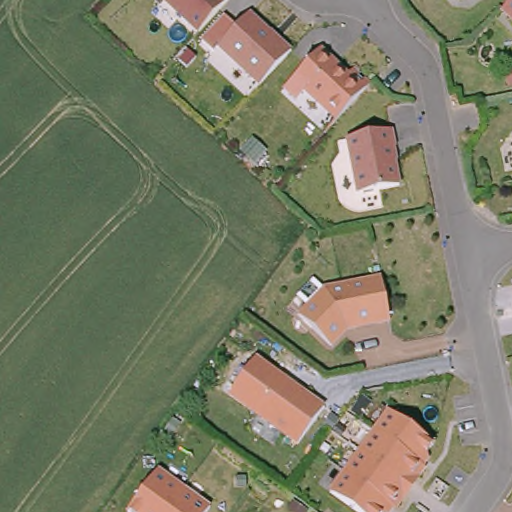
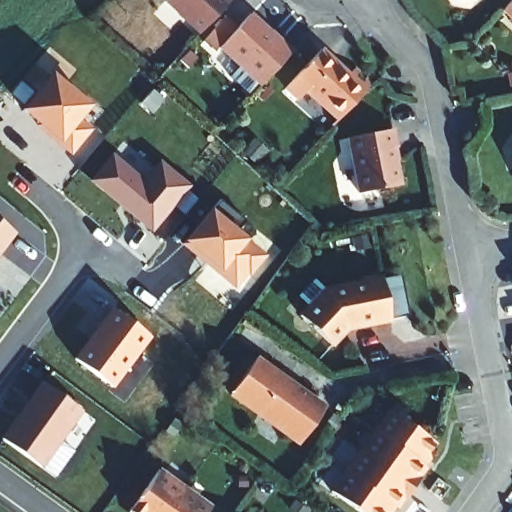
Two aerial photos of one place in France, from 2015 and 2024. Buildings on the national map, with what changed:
unchanged [(150,0),(213,0),(185,32),(150,0)]
unchanged [(497,0),(512,0),(512,25),(491,7),(497,0)]
unchanged [(259,72),(248,84),(206,46),(235,13),(263,38),(264,37),(278,50),(259,72)]
new [(148,32),(157,39),(146,51),(138,43),(148,32)]
new [(223,64),(212,76),(194,59),(204,47),(223,64)]
unchanged [(345,99),(318,128),(287,101),(280,110),(266,99),(301,60),(330,85),(345,67),(360,81),(345,99)]
new [(91,106),(79,121),(91,131),(70,157),(35,129),(38,125),(20,110),(51,74),(91,106)]
unchanged [(350,195),(337,139),(381,130),(385,147),(382,148),(390,186),(350,195)]
unchanged [(512,147),(512,171),(507,148),(512,147)]
new [(142,180),(158,160),(190,187),(151,233),(88,182),(112,152),(142,180)]
new [(247,240),(266,257),(248,277),(245,274),(233,289),(180,245),(182,242),(210,209),(247,240)]
new [(15,234),(0,254),(0,223),(15,234)]
unchanged [(290,317),(317,290),(368,280),(372,279),(373,282),(373,283),(375,295),(381,322),(347,328),(346,320),(341,320),(335,327),(338,330),(322,347),(290,317)]
new [(151,338),(113,388),(73,359),(111,307),(151,338)]
unchanged [(292,446),(222,396),(248,360),(317,410),(292,446)]
new [(83,414),(43,471),(0,438),(41,382),(83,414)]
unchanged [(427,446),(413,466),(415,467),(387,508),(385,507),(381,512),(349,512),(325,495),(382,413),(427,446)]
unchanged [(153,474),(180,494),(166,512),(124,512),(153,474)]
unchanged [(180,494),(203,512),(166,512),(180,494)]

